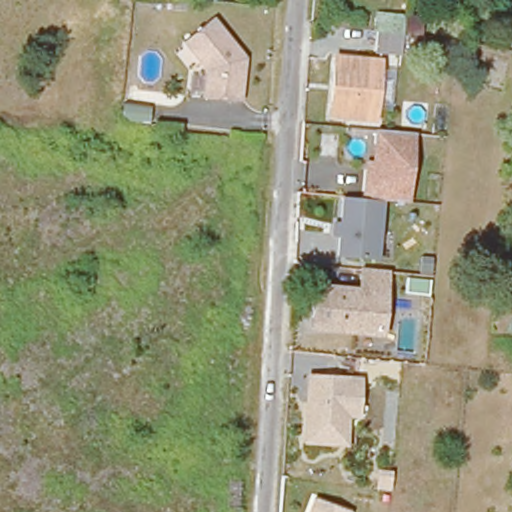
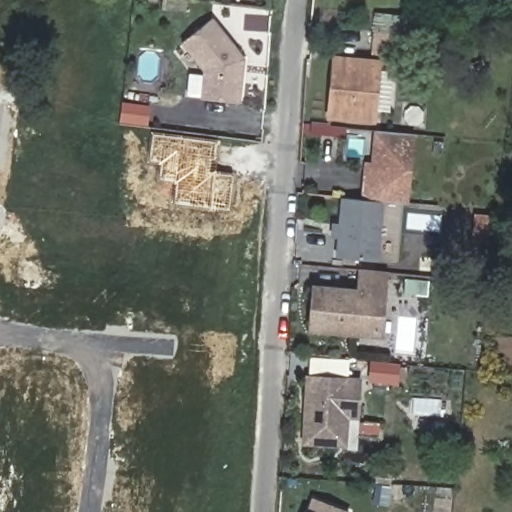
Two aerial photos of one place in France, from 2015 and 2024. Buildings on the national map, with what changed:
unchanged [(372,51),(372,37),(376,14),(410,17),(407,41),(403,54),(372,51)]
unchanged [(200,100),(204,71),(182,42),(209,21),(212,24),(242,62),(236,65),(234,73),(240,75),(235,104),(202,101),(200,100)]
unchanged [(370,119),(327,112),(338,55),(379,61),(370,119)]
new [(119,123),(122,102),(151,106),(148,127),(119,123)]
unchanged [(417,135),(411,205),(387,202),(381,260),(338,256),(342,196),(362,198),(366,160),(373,160),(375,130),(417,135)]
new [(220,140),(216,170),(234,172),(231,211),(172,204),(175,184),(156,181),(159,164),(147,162),(151,131),(220,140)]
unchanged [(379,330),(308,320),(315,283),(354,285),(357,265),(382,268),(379,330)]
unchanged [(362,421),(351,420),(348,448),(302,443),(307,375),(363,376),(362,421)]
unchanged [(313,497),(323,502),(346,512),(307,512),(313,497)]

